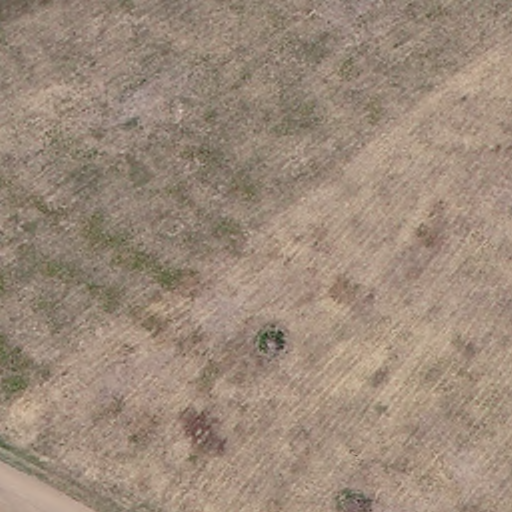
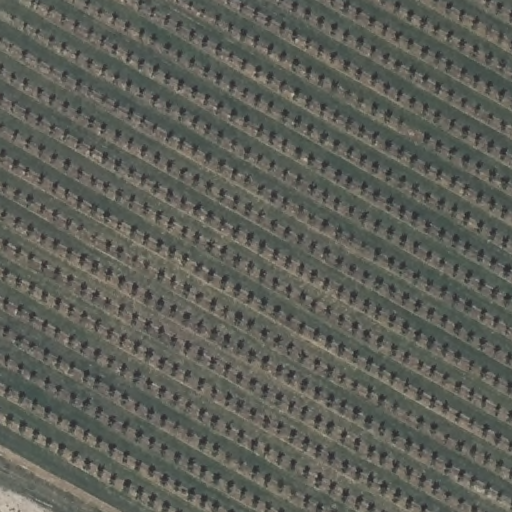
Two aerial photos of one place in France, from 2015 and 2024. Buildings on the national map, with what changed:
[]

